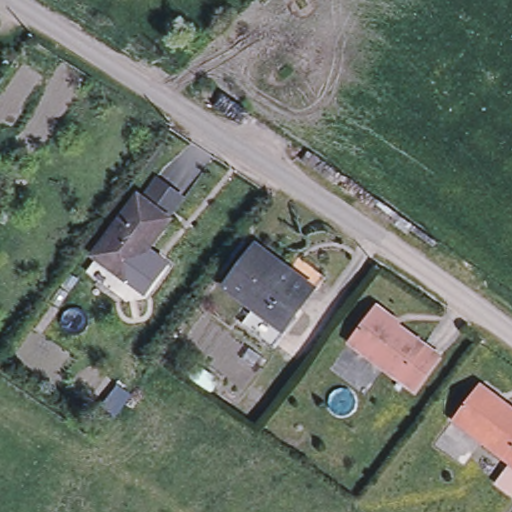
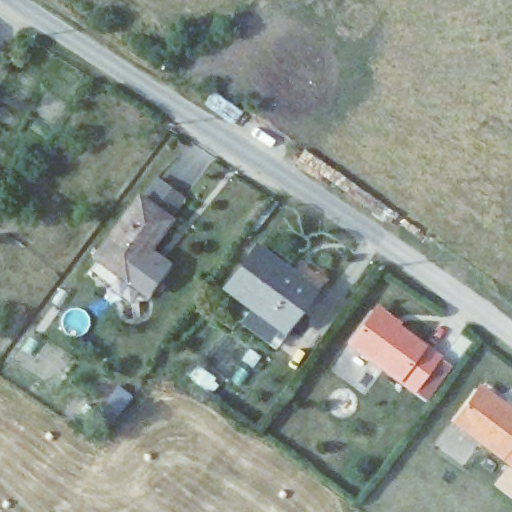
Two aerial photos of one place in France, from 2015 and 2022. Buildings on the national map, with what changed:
unchanged [(168,221),(125,283),(93,260),(135,199),(168,221)]
unchanged [(281,333),(223,291),(249,256),(253,251),(291,279),(310,293),(281,333)]
unchanged [(415,392),(348,346),(369,314),(374,306),(400,324),(398,328),(440,356),(415,392)]
unchanged [(481,386),(490,392),(490,399),(498,404),(500,400),(512,408),(512,460),(453,418),(474,387),(481,386)]

